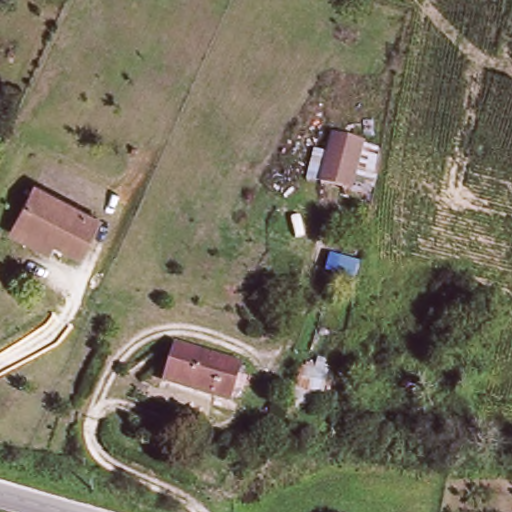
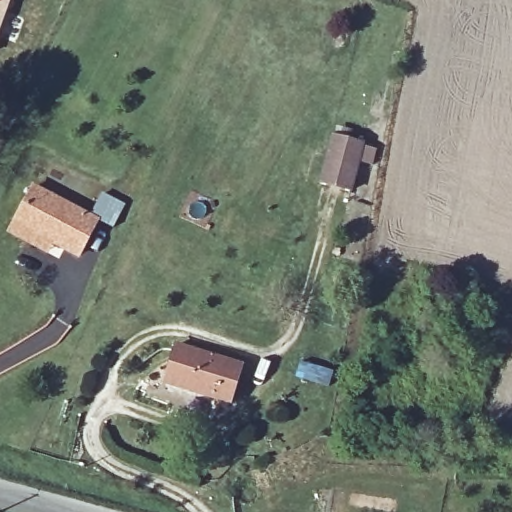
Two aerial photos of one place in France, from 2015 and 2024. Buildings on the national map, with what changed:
new [(0,34),(0,0),(12,0),(0,34)]
unchanged [(354,179),(352,191),(321,185),(332,138),(384,154),(376,184),(354,179)]
unchanged [(4,228),(9,219),(27,181),(91,215),(73,252),(45,238),(40,247),(4,228)]
unchanged [(178,347),(243,372),(229,408),(164,386),(178,347)]

